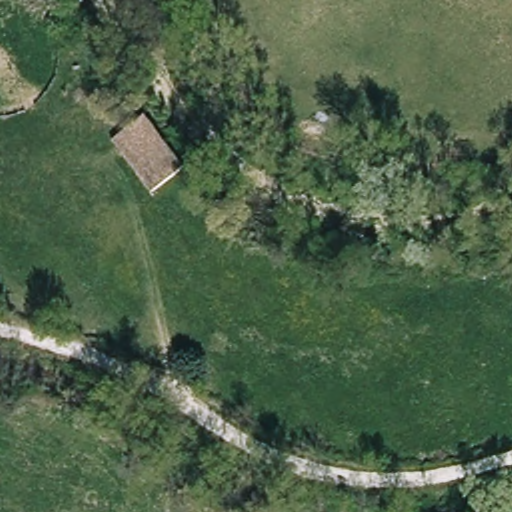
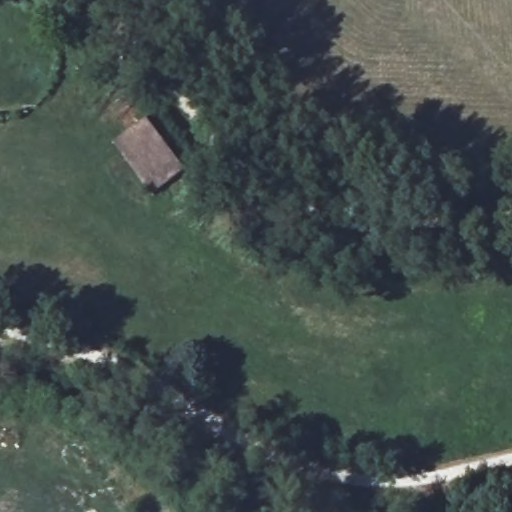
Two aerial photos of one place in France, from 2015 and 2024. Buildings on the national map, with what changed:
unchanged [(145,121),(191,168),(161,196),(115,150),(145,121)]

